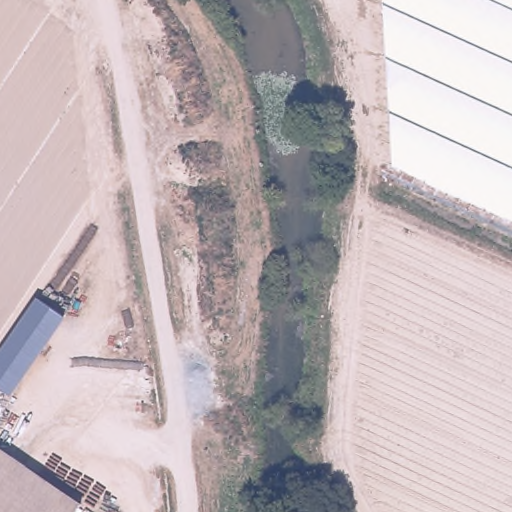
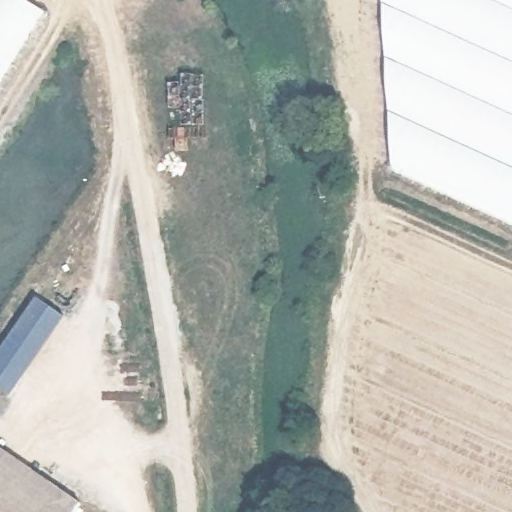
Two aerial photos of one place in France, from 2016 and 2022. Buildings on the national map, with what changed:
new [(0,93),(0,0),(24,0),(49,15),(0,93)]
unchanged [(381,0),(512,0),(512,219),(390,164),(381,0)]
unchanged [(14,397),(0,388),(0,358),(40,298),(68,317),(14,397)]
unchanged [(41,507),(37,512),(0,512),(0,445),(56,483),(41,507)]
unchanged [(72,512),(37,512),(41,507),(56,483),(81,499),(72,512)]

